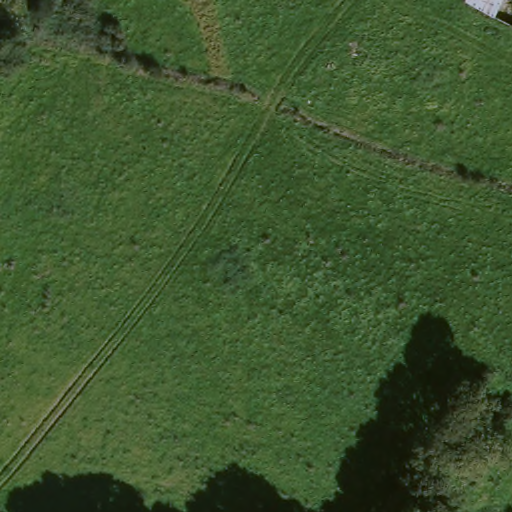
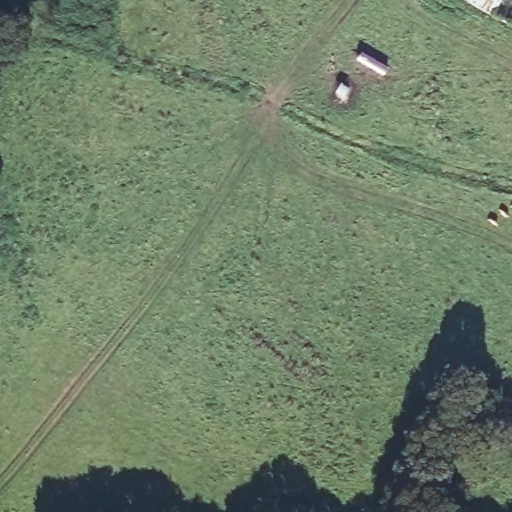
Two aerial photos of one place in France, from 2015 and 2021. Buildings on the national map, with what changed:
unchanged [(491,17),(500,0),(512,0),(512,21),(509,27),(491,17)]

